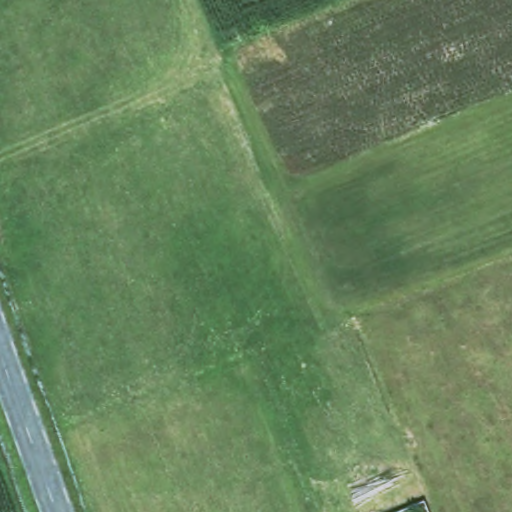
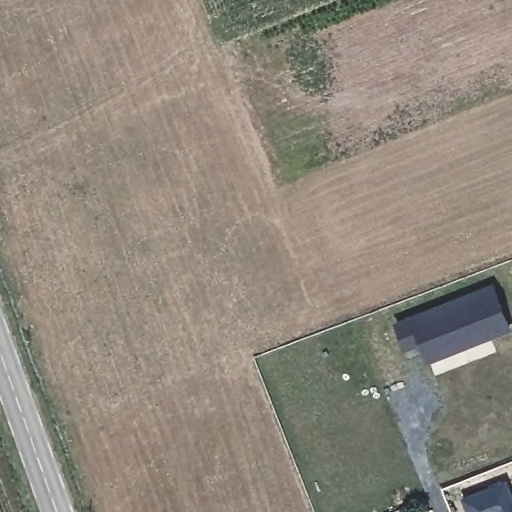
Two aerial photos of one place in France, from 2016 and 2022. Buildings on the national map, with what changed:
new [(496,279),(512,322),(431,352),(424,333),(409,339),(400,315),(496,279)]
new [(512,493),(512,512),(505,512),(505,511),(504,512),(471,512),(465,496),(507,479),(512,493)]

